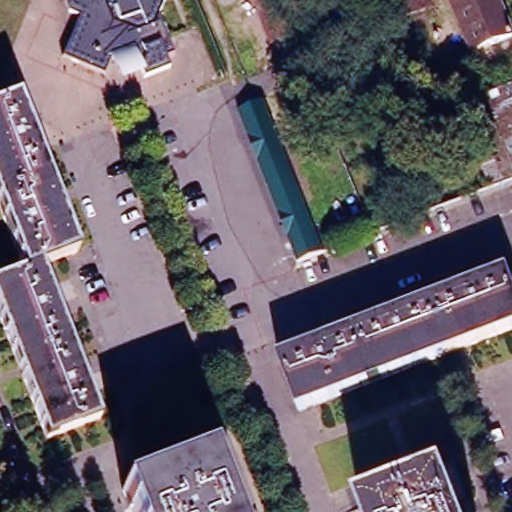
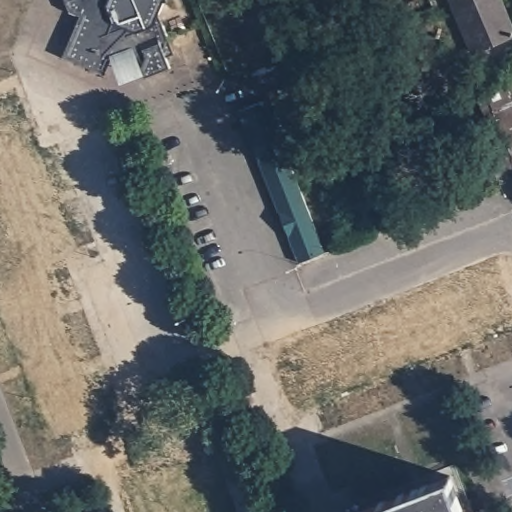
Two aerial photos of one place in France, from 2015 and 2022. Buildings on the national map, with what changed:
unchanged [(61,53),(78,12),(68,7),(65,0),(162,0),(162,1),(157,12),(174,52),(167,55),(169,60),(170,66),(145,75),(138,55),(133,45),(111,55),(110,56),(138,67),(142,76),(113,89),(103,71),(61,53)]
unchanged [(275,60),(252,0),(275,0),(295,51),(275,60)]
unchanged [(295,51),(275,0),(306,0),(322,40),(295,51)]
unchanged [(447,0),(495,0),(510,34),(485,45),(468,52),(459,31),(447,0)]
unchanged [(510,86),(512,91),(512,97),(509,99),(512,107),(512,158),(486,97),(510,86)]
demolished [(77,252),(41,266),(99,420),(47,440),(0,319),(0,281),(24,272),(0,210),(0,105),(18,99),(77,252)]
unchanged [(327,253),(301,263),(241,111),(267,101),(327,253)]
demolished [(298,413),(278,362),(508,269),(512,280),(512,328),(298,413)]
demolished [(231,512),(132,512),(122,487),(209,453),(231,512)]
unchanged [(462,512),(364,512),(362,507),(447,473),(462,512)]

